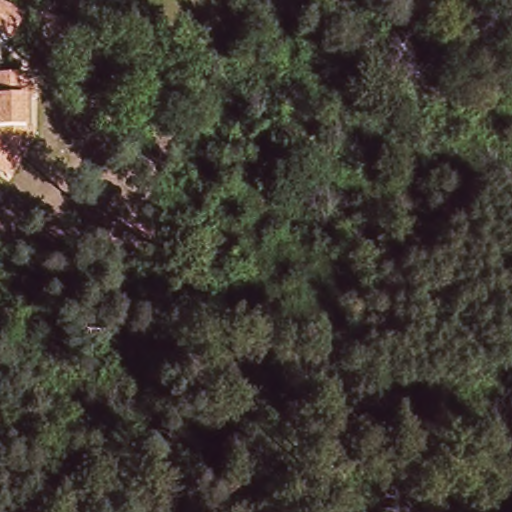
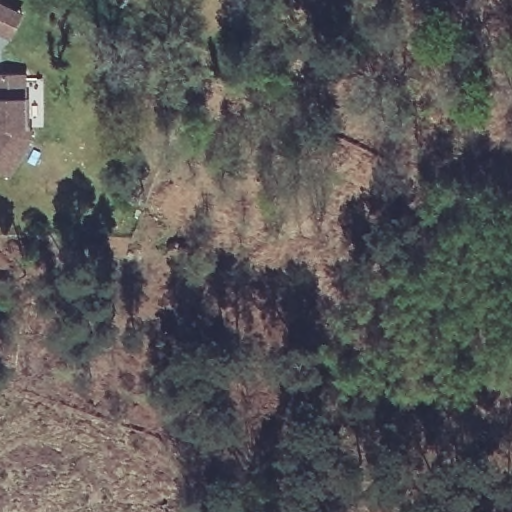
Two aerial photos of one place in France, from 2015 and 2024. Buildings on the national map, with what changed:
unchanged [(13,5),(1,31),(0,31),(0,0),(1,0),(13,5)]
unchanged [(33,128),(38,135),(13,180),(0,172),(0,73),(30,72),(31,95),(33,128)]

